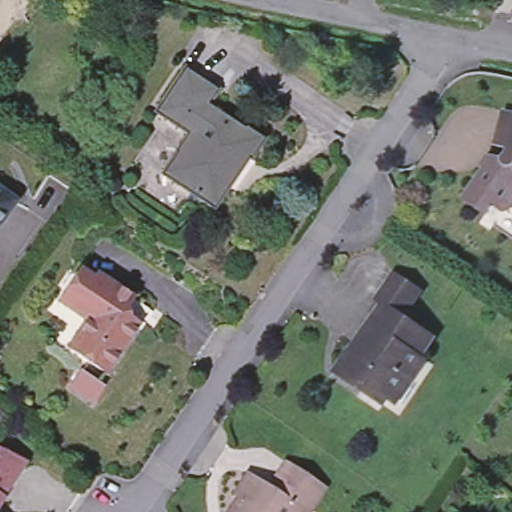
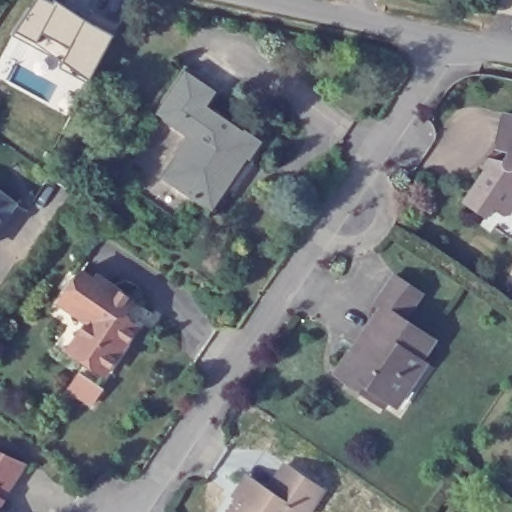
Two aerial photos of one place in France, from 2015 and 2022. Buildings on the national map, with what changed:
new [(29,7),(32,9),(38,0),(45,0),(51,4),(54,0),(112,37),(88,82),(62,70),(70,50),(43,34),(37,43),(15,32),(12,36),(29,7)]
unchanged [(223,92),(213,106),(247,129),(249,126),(269,139),(254,161),(247,156),(225,188),(229,190),(215,211),(162,176),(177,152),(187,135),(157,115),(188,69),(223,92)]
unchanged [(492,229),(493,226),(462,206),(483,175),(479,172),(485,162),(499,164),(500,160),(502,160),(503,154),(490,151),(499,116),(512,119),(512,243),(492,229)]
unchanged [(0,220),(0,185),(17,197),(0,220)]
unchanged [(350,354),(355,358),(387,310),(377,303),(395,275),(422,293),(404,319),(435,339),(422,359),(425,361),(410,384),(402,379),(387,402),(370,390),(367,396),(335,375),(350,354)]
unchanged [(95,286),(99,282),(132,303),(125,314),(128,326),(137,332),(105,380),(67,354),(87,325),(60,307),(66,299),(80,276),(95,286)]
unchanged [(91,409),(69,394),(80,377),(102,392),(91,409)]
unchanged [(4,499),(0,511),(0,452),(1,452),(31,464),(7,501),(4,499)]
unchanged [(232,497),(245,478),(267,493),(283,467),(320,491),(307,512),(230,512),(237,500),(232,497)]

